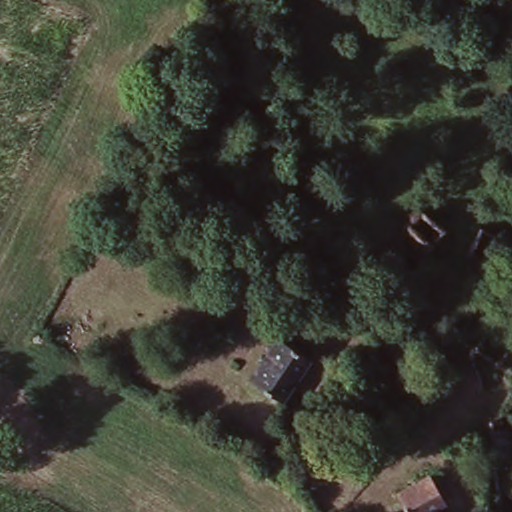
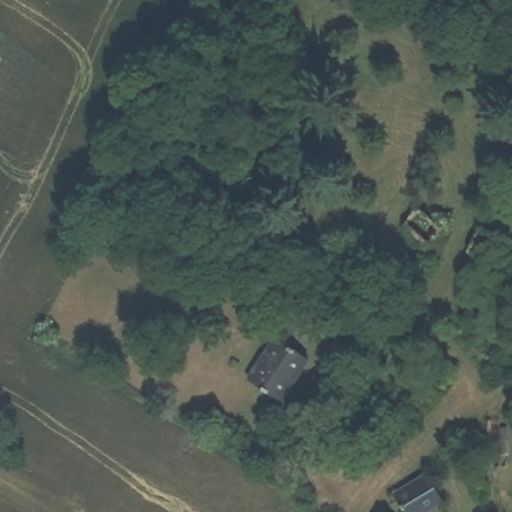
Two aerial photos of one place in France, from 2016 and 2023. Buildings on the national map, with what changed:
unchanged [(246,382),(277,340),(308,362),(280,403),(246,382)]
unchanged [(487,461),(481,421),(506,419),(509,460),(487,461)]
unchanged [(446,504),(433,512),(406,512),(398,498),(430,478),(446,504)]
unchanged [(512,512),(511,512),(512,511),(512,512)]

